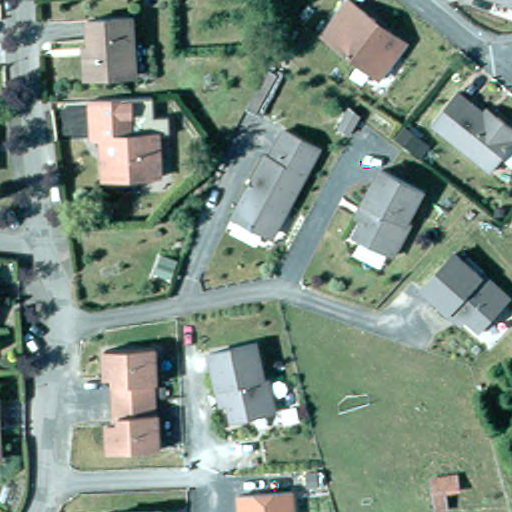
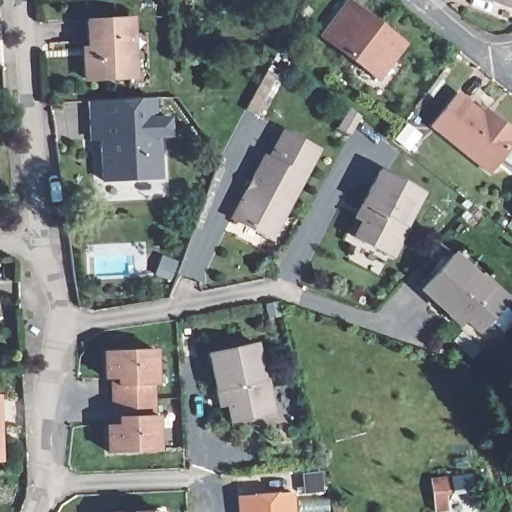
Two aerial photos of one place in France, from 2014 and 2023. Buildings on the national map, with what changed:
unchanged [(344,0),(350,0),(372,15),(374,17),(371,21),(402,44),(378,76),(320,32),(337,9),(344,0)]
unchanged [(495,0),(512,0),(512,6),(498,1),(495,0)]
unchanged [(128,66),(84,69),(83,48),(83,39),(89,38),(87,10),(129,7),(131,46),(133,66),(128,66)]
unchanged [(483,106),(494,114),(511,127),(512,136),(491,163),(487,169),(476,160),(427,122),(453,90),(480,111),(483,106)]
unchanged [(361,119),(351,136),(339,131),(349,112),(361,119)]
unchanged [(84,120),(135,116),(136,133),(156,131),(159,175),(101,179),(100,155),(94,155),(93,136),(85,137),(84,120)]
unchanged [(315,148),(300,177),(295,175),(264,237),(227,220),(259,156),(263,159),(279,130),(315,148)]
unchanged [(412,185),(420,189),(404,221),(407,222),(392,255),(359,240),(351,236),(360,220),(353,216),(360,201),(376,168),(412,185)]
unchanged [(480,336),(422,288),(456,250),(512,296),(512,300),(480,336)]
unchanged [(177,270),(171,288),(157,283),(162,265),(177,270)]
unchanged [(212,388),(205,352),(253,343),(259,378),(263,377),(269,412),(226,420),(223,403),(215,405),(212,388)]
unchanged [(156,381),(152,381),(153,412),(157,412),(157,447),(108,448),(108,421),(120,420),(119,413),(114,413),(114,380),(119,380),(119,373),(107,374),(106,346),(155,345),(156,381)]
unchanged [(241,495),(295,492),(295,512),(241,512),(241,495)]
unchanged [(99,510),(110,510),(159,509),(159,512),(99,512),(99,510)]

